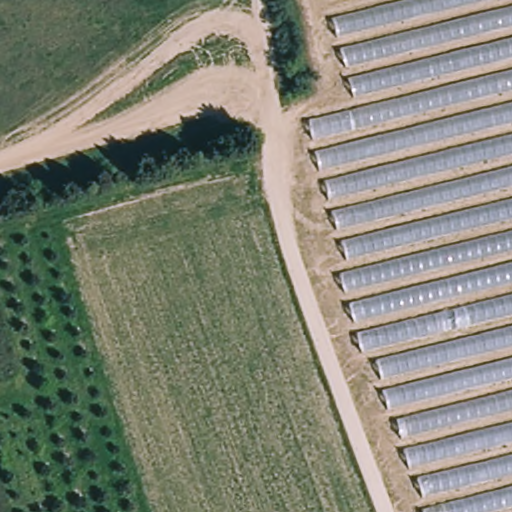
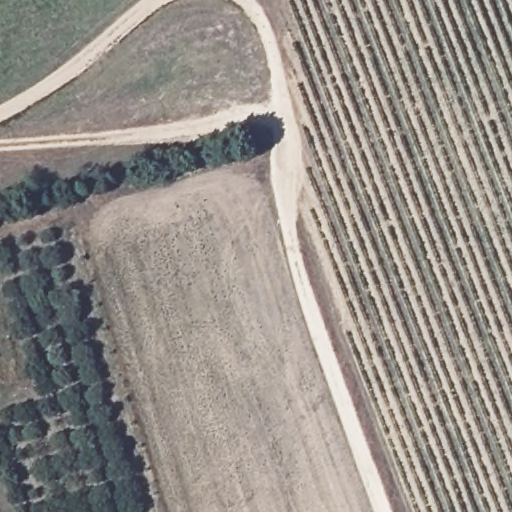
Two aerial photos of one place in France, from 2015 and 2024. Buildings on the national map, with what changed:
demolished [(393,408),(375,366),(362,342),(354,305),(339,267),(345,249),(331,196),(308,116),(358,105),(328,0),(512,0),(512,512),(425,512),(418,492),(393,408)]

